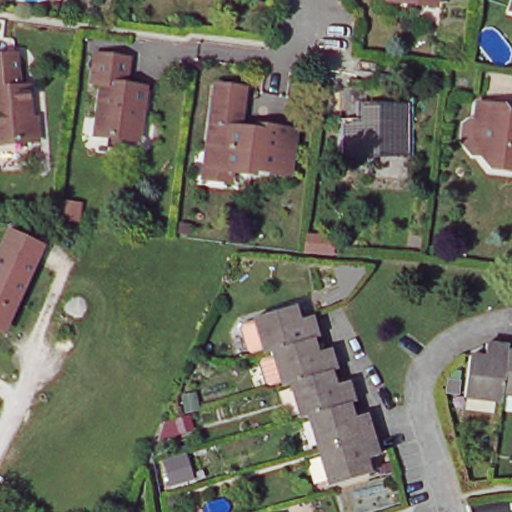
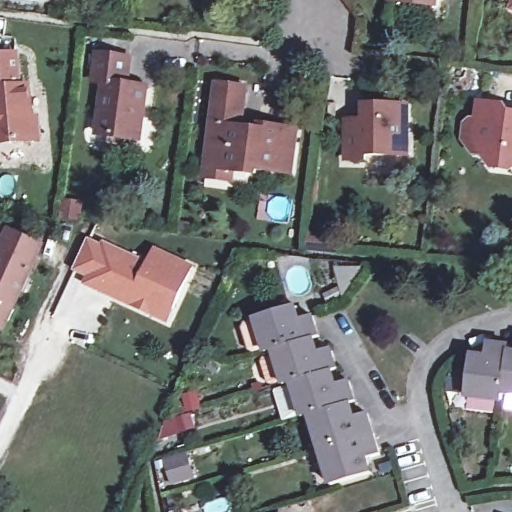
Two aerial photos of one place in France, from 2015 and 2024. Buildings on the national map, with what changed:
unchanged [(405,1),(404,0),(441,0),(440,5),(405,1)]
unchanged [(28,140),(0,141),(0,51),(15,50),(17,84),(27,84),(27,117),(38,115),(40,139),(28,140)]
unchanged [(135,58),(132,86),(150,89),(142,139),(100,134),(107,84),(95,83),(101,53),(135,58)]
unchanged [(203,173),(205,161),(215,79),(245,84),(239,124),(257,126),(257,121),(294,126),(289,168),(253,163),(252,168),(232,165),(230,178),(203,173)]
unchanged [(362,150),(361,158),(342,156),(345,120),(360,122),(363,99),(397,104),(408,105),(407,121),(404,156),(362,150)]
unchanged [(476,122),(480,101),(505,104),(505,112),(512,113),(512,162),(509,161),(507,170),(487,167),(482,157),(473,140),(476,122)]
unchanged [(40,245),(5,327),(0,325),(0,255),(10,232),(40,245)]
new [(86,277),(74,271),(88,239),(101,244),(103,240),(149,260),(155,248),(196,267),(169,324),(82,285),(86,277)]
unchanged [(359,415),(372,412),(379,435),(385,454),(370,460),(375,474),(334,487),(310,413),(305,415),(295,383),(287,386),(277,353),(272,355),(271,350),(260,354),(255,351),(248,327),(250,322),(262,319),(261,318),(299,307),(302,319),(317,317),(319,322),(324,339),(327,354),(337,352),(343,369),(337,371),(344,385),(355,382),(360,397),(352,399),(359,415)]
unchanged [(505,401),(467,394),(473,357),(485,359),(488,342),(502,344),(512,346),(512,354),(512,355),(512,395),(506,395),(505,401)]

